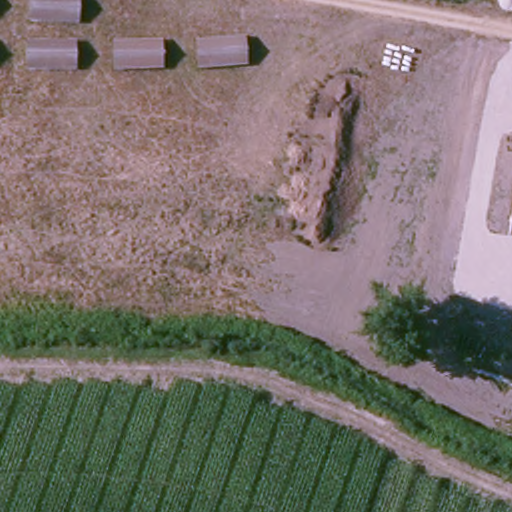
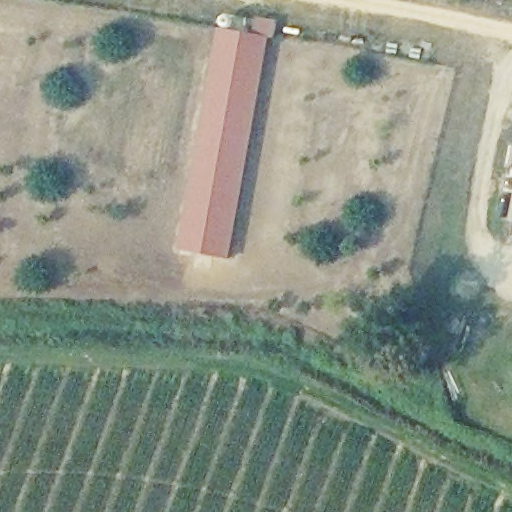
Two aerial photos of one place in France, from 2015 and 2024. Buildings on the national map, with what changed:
new [(254,35),(256,16),(276,20),(272,38),(268,38),(229,257),(181,249),(218,29),(254,35)]
unchanged [(511,220),(512,214),(512,220),(511,220)]

